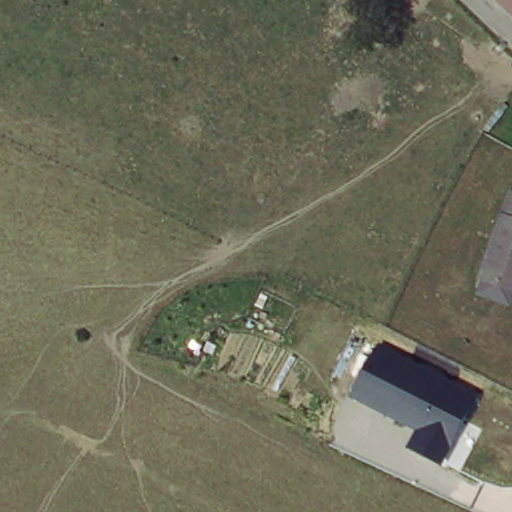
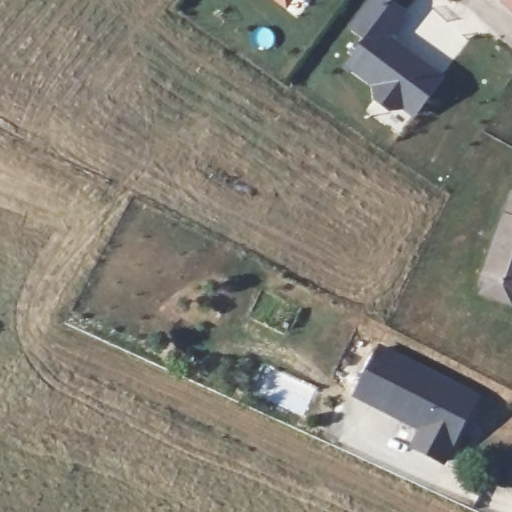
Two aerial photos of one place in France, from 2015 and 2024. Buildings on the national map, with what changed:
new [(274,0),(295,0),(287,10),(274,0)]
new [(392,0),(394,1),(362,40),(346,27),(367,0),(392,0)]
unchanged [(509,0),(512,0),(512,9),(506,5),(509,0)]
new [(362,40),(394,1),(412,15),(397,36),(446,75),(414,119),(402,110),(390,114),(374,100),(370,87),(342,66),(362,40)]
unchanged [(512,201),(512,284),(482,272),(512,201)]
unchanged [(475,398),(444,465),(409,448),(417,431),(352,398),(375,348),(475,398)]

